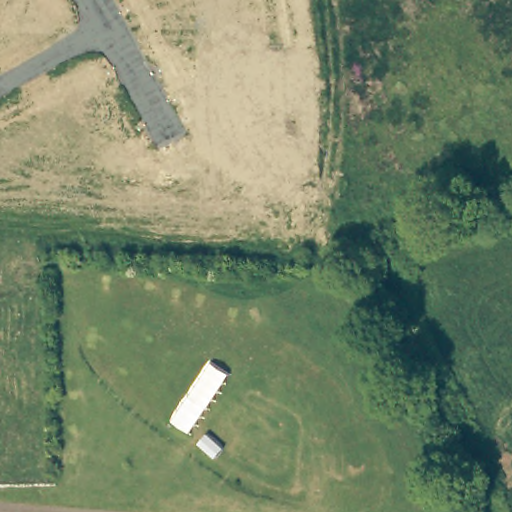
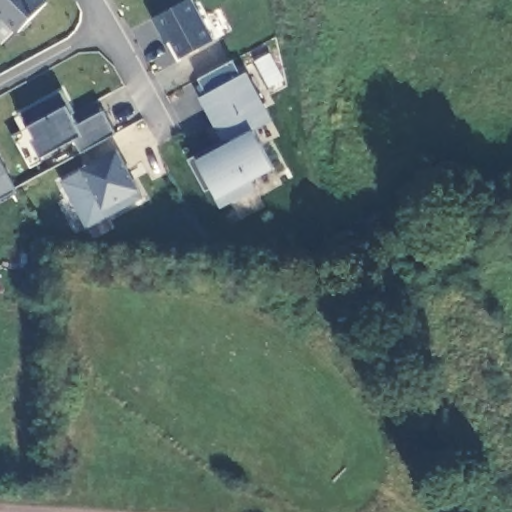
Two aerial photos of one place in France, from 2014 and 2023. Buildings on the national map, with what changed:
unchanged [(0,16),(0,0),(48,0),(18,33),(0,16)]
new [(170,40),(165,44),(151,18),(184,0),(193,0),(214,39),(180,57),(170,40)]
new [(221,208),(194,159),(223,143),(198,96),(207,91),(199,78),(233,60),(240,74),(246,71),(272,119),(252,129),(273,168),(253,179),(256,188),(221,208)]
new [(81,152),(73,139),(41,156),(30,138),(34,135),(18,112),(62,89),(74,112),(71,114),(78,125),(103,111),(115,133),(81,152)]
new [(87,228),(61,179),(79,169),(119,150),(142,197),(87,228)]
unchanged [(0,160),(15,189),(0,198),(0,160)]

